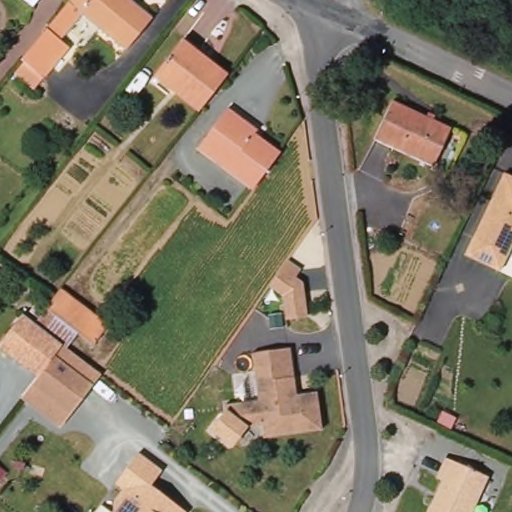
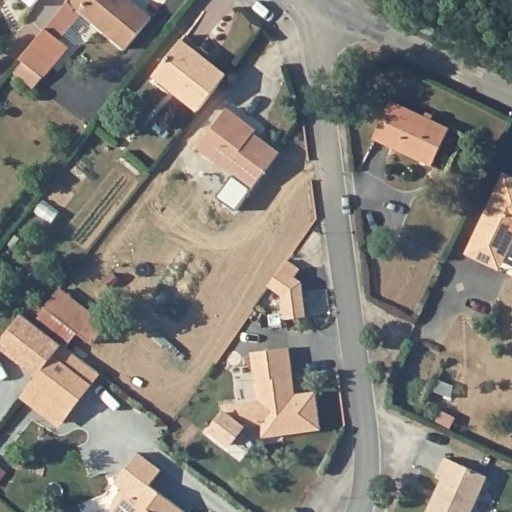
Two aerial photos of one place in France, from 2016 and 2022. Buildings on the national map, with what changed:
unchanged [(47,37),(62,17),(75,0),(133,0),(158,19),(132,51),(90,17),(67,42),(78,52),(52,82),(26,63),(24,66),(13,57),(34,30),(45,39),(47,37)]
unchanged [(208,56),(204,60),(228,78),(200,116),(155,81),(188,40),(208,56)]
unchanged [(454,132),(435,170),(378,142),(398,104),(454,132)]
unchanged [(229,109),(258,131),(254,137),(280,156),(251,193),(197,152),(229,109)]
unchanged [(504,177),(512,181),(512,240),(480,226),(504,177)]
unchanged [(512,258),(502,277),(464,259),(480,226),(512,240),(512,258)]
unchanged [(303,270),(298,277),(305,282),(310,317),(290,321),(286,296),(272,286),(290,261),(303,270)]
unchanged [(61,290),(108,326),(93,344),(48,307),(61,290)]
unchanged [(37,388),(0,359),(0,353),(22,325),(62,356),(37,388)]
unchanged [(263,420),(247,422),(244,406),(243,398),(250,397),(259,396),(258,386),(252,348),(289,342),(290,342),(297,389),(317,386),(323,423),(265,432),(263,420)]
unchanged [(128,486),(120,480),(143,450),(167,467),(155,482),(191,510),(189,512),(117,512),(116,502),(128,486)]
unchanged [(438,473),(446,454),(489,472),(472,512),(428,512),(443,476),(438,473)]

